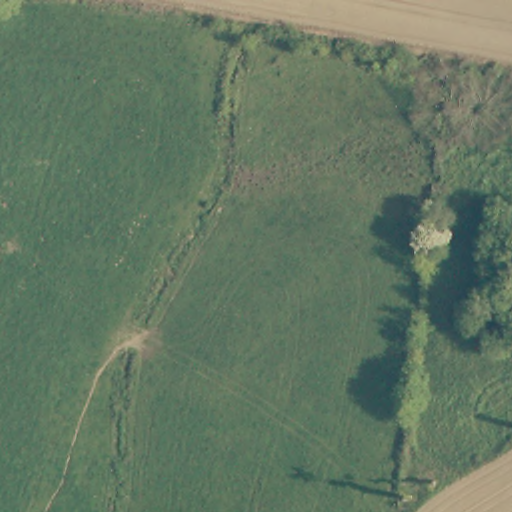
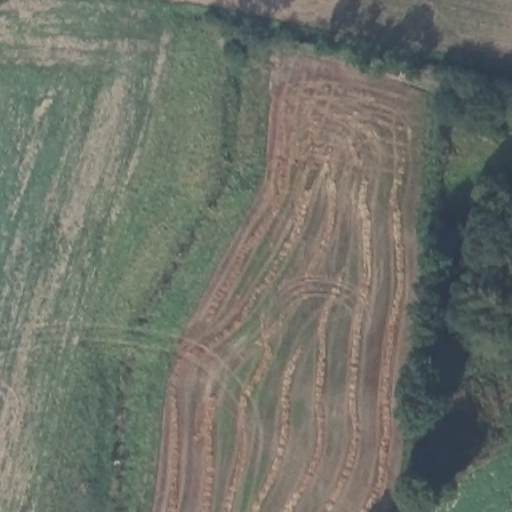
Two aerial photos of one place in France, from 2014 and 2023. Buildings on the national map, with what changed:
unchanged [(512,293),(512,312),(503,306),(512,293)]

